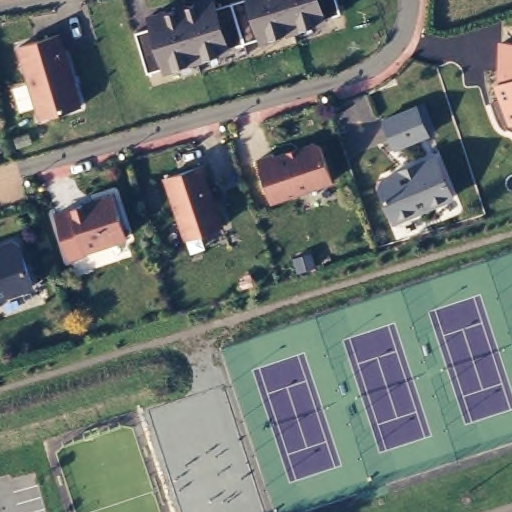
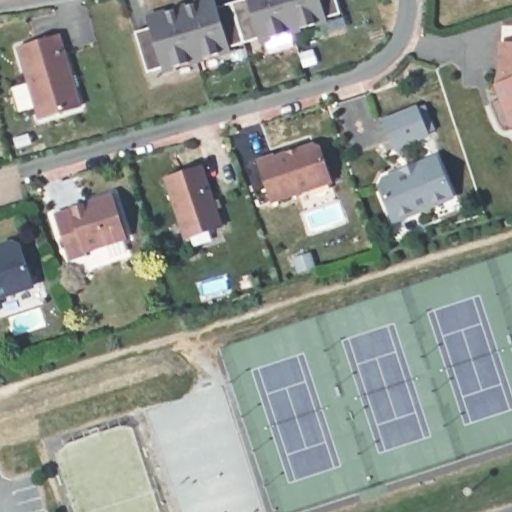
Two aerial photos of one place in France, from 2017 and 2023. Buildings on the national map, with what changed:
unchanged [(324,19),(327,25),(258,45),(256,37),(227,47),(229,54),(162,73),(161,67),(147,72),(133,31),(150,26),(146,14),(190,0),(211,0),(214,7),(240,0),(336,0),(339,12),(324,19)]
unchanged [(81,102),(38,118),(16,46),(61,32),(81,102)]
unchanged [(494,102),(499,100),(493,84),(499,81),(499,41),(512,41),(512,123),(501,126),(494,102)]
unchanged [(431,137),(397,149),(384,117),(416,104),(431,137)]
unchanged [(333,181),(273,201),(258,159),(274,152),(276,156),(318,140),(333,181)]
unchanged [(455,196),(396,220),(381,177),(437,155),(455,196)]
unchanged [(221,222),(186,237),(164,177),(200,164),(221,222)]
unchanged [(128,239),(88,252),(88,255),(71,260),(55,209),(113,192),(128,239)]
unchanged [(35,287),(0,298),(0,247),(20,240),(35,287)]

